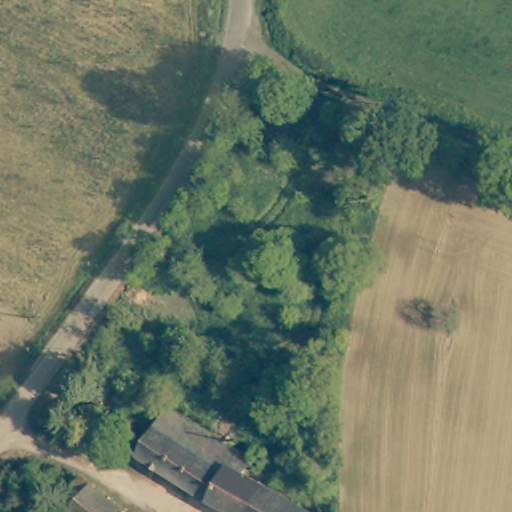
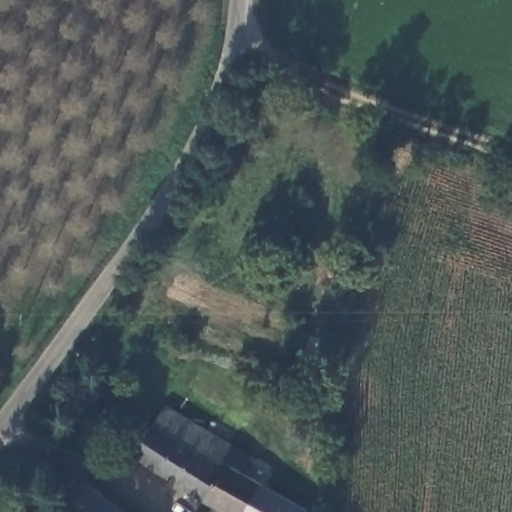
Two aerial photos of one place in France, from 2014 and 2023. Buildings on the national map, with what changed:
unchanged [(87,375),(106,389),(95,405),(75,390),(87,375)]
unchanged [(207,503),(138,461),(166,412),(235,455),(207,503)]
unchanged [(241,479),(300,512),(222,512),(207,503),(235,455),(249,463),(241,479)]
unchanged [(131,510),(130,512),(78,512),(69,504),(92,477),(131,510)]
unchanged [(130,512),(131,510),(133,512),(130,512)]

